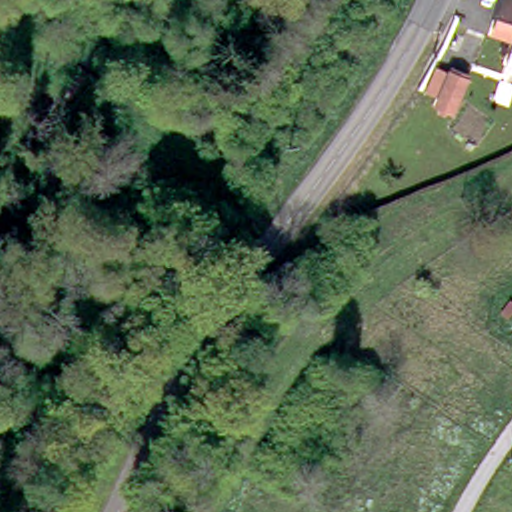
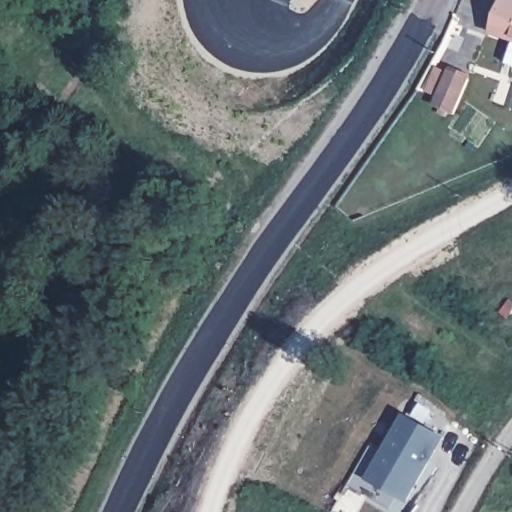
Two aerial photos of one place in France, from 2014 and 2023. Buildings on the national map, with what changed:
unchanged [(503,0),(512,0),(512,33),(493,25),(503,0)]
unchanged [(512,40),(512,60),(505,57),(512,40)]
unchanged [(470,82),(453,114),(438,107),(443,98),(430,92),(441,72),(453,77),(455,75),(470,82)]
new [(445,437),(406,503),(365,479),(403,412),(445,437)]

